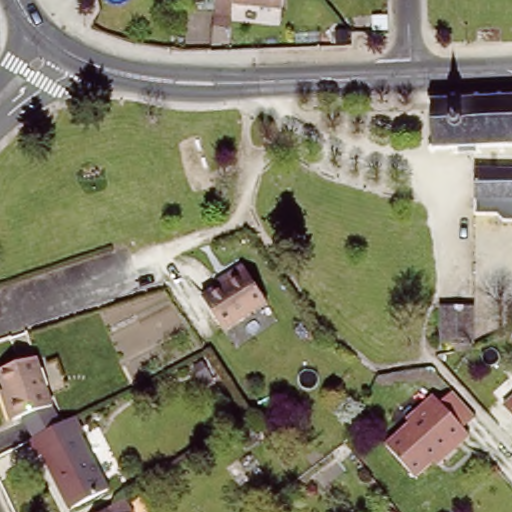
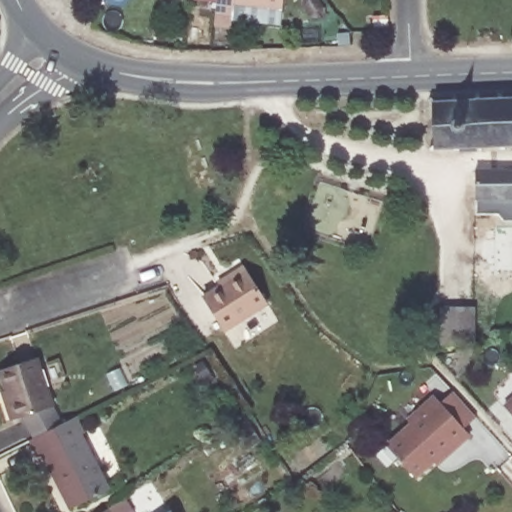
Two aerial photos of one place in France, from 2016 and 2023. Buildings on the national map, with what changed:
unchanged [(238,4),(237,17),(216,17),(217,0),(279,0),(278,7),(238,4)]
unchanged [(448,94),(451,95),(455,90),(468,92),(469,94),(472,94),(474,91),(486,92),(485,94),(493,95),(497,91),(505,91),(510,94),(512,94),(512,146),(505,145),(503,149),(495,149),(493,146),(485,145),(481,149),(475,149),(473,146),(462,145),(460,149),(450,150),(448,146),(445,145),(441,150),(433,150),(435,93),(447,92),(448,94)]
unchanged [(495,215),(475,215),(477,168),(512,169),(512,224),(503,225),(495,215)]
unchanged [(241,268),(265,300),(226,329),(205,302),(241,268)]
unchanged [(483,308),(485,348),(453,346),(451,308),(483,308)]
unchanged [(32,354),(50,401),(12,419),(0,392),(0,368),(32,354)]
unchanged [(436,396),(468,435),(435,462),(431,463),(414,479),(385,445),(408,423),(407,418),(436,396)]
unchanged [(512,397),(512,413),(504,403),(512,397)]
unchanged [(75,419),(83,432),(80,438),(108,487),(81,504),(68,482),(62,483),(47,453),(40,456),(31,440),(75,419)]
unchanged [(129,497),(136,510),(133,512),(108,512),(116,506),(129,497)]

